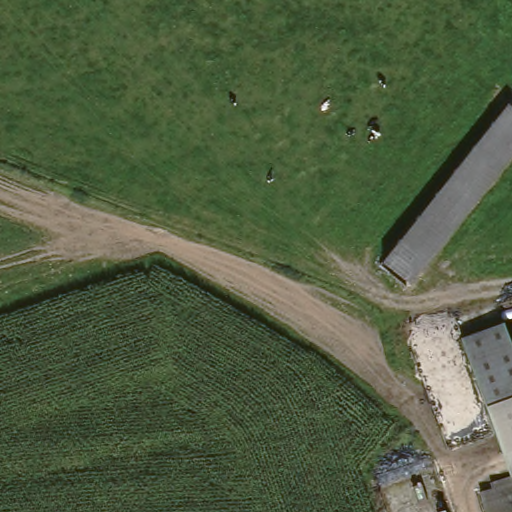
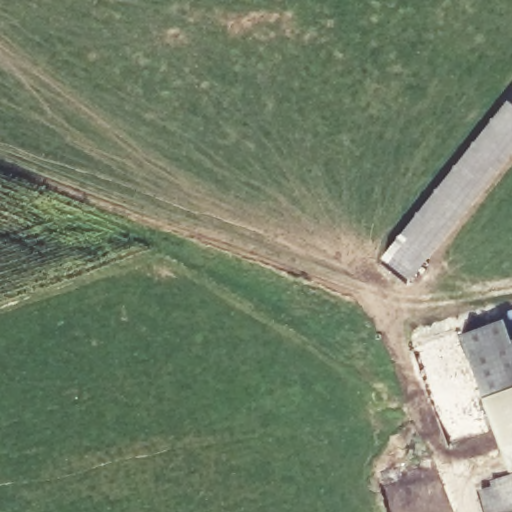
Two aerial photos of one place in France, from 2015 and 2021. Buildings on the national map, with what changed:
unchanged [(512,115),(512,158),(408,285),(380,264),(506,110),(512,115)]
unchanged [(508,320),(512,330),(512,469),(465,334),(508,320)]
unchanged [(512,483),(512,512),(484,512),(478,495),(493,490),(512,483)]

